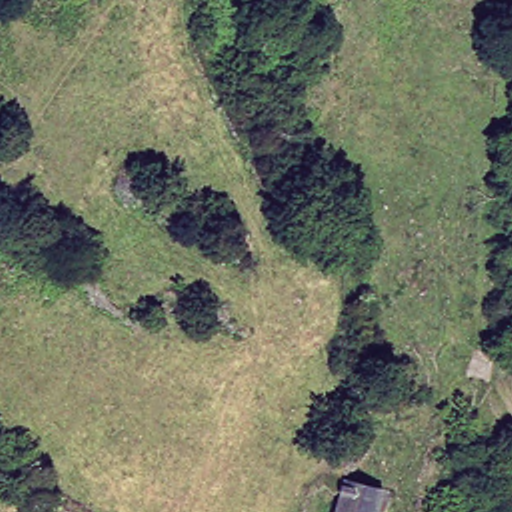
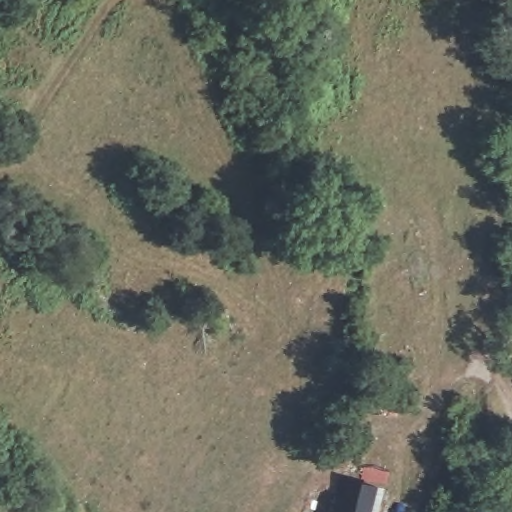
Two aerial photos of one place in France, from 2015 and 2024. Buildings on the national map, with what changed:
unchanged [(377,512),(336,512),(348,478),(384,489),(377,512)]

